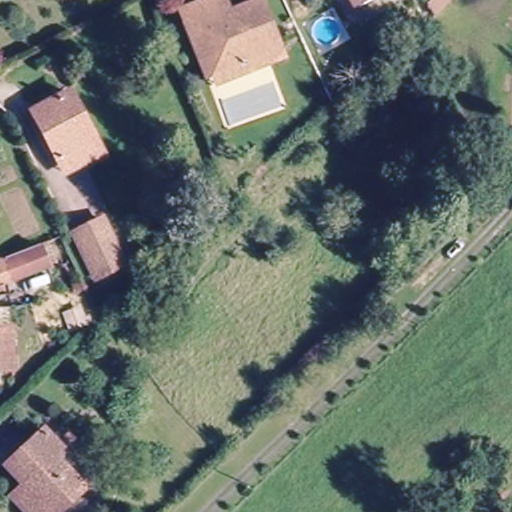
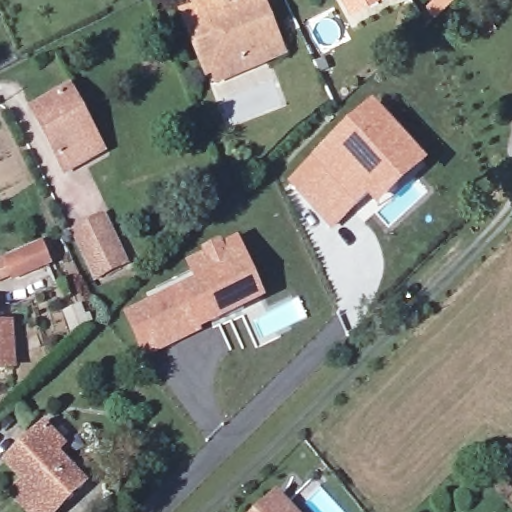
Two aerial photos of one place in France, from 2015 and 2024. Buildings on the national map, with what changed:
unchanged [(351,6),(348,0),(364,0),(351,6)]
unchanged [(278,62),(215,89),(194,44),(189,47),(179,26),(209,12),(221,7),(230,27),(257,14),(278,62)]
unchanged [(63,173),(56,160),(30,111),(67,92),(94,141),(101,154),(63,173)]
new [(427,166),(378,213),(368,200),(332,230),(287,179),(372,106),(427,166)]
unchanged [(100,215),(122,262),(91,276),(70,229),(100,215)]
unchanged [(1,273),(0,272),(0,251),(28,238),(37,259),(1,273)]
new [(122,314),(194,282),(185,263),(239,240),(267,303),(143,361),(122,314)]
unchanged [(6,330),(7,370),(0,370),(0,330),(6,330)]
unchanged [(79,486),(50,512),(20,512),(5,495),(17,484),(0,467),(0,466),(37,429),(57,449),(51,457),(79,486)]
new [(286,512),(261,512),(275,499),(286,512)]

